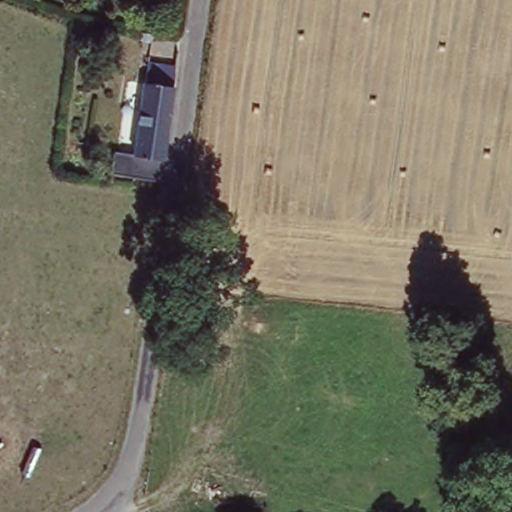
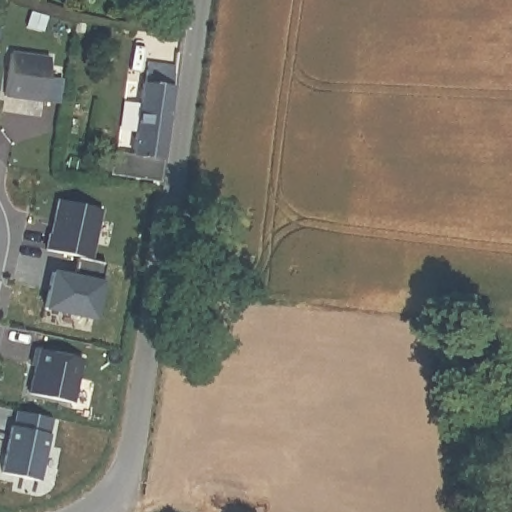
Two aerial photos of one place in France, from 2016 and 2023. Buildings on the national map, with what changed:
new [(40,103),(2,98),(8,55),(46,60),(40,103)]
unchanged [(141,157),(150,90),(151,78),(166,80),(169,59),(183,61),(181,83),(179,94),(170,161),(168,171),(166,187),(113,179),(116,153),(141,157)]
new [(86,268),(43,258),(46,242),(48,242),(55,208),(97,217),(86,268)]
new [(90,327),(74,324),(75,320),(57,316),(56,320),(41,316),(49,280),(69,284),(73,265),(102,271),(90,327)]
new [(73,406),(30,397),(36,369),(33,368),(36,352),(83,362),(73,406)]
new [(39,487),(2,479),(12,432),(15,433),(18,417),(52,425),(39,487)]

